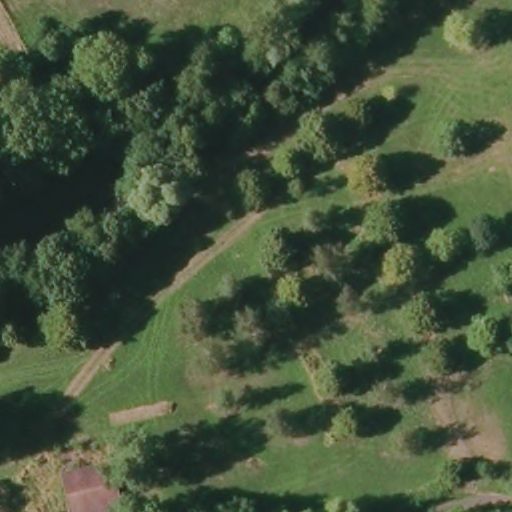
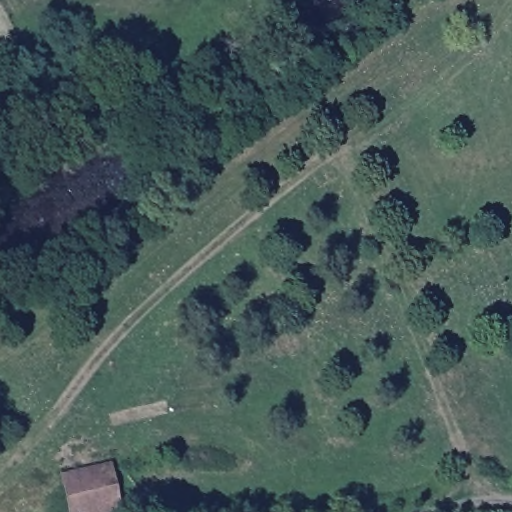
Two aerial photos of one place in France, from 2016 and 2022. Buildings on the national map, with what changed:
unchanged [(117,508),(101,512),(68,512),(59,473),(111,464),(117,508)]

